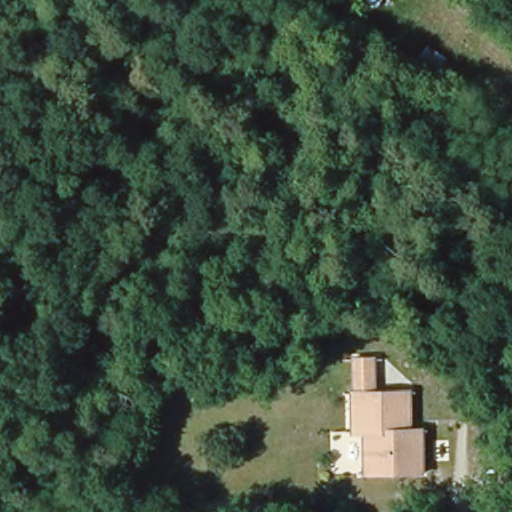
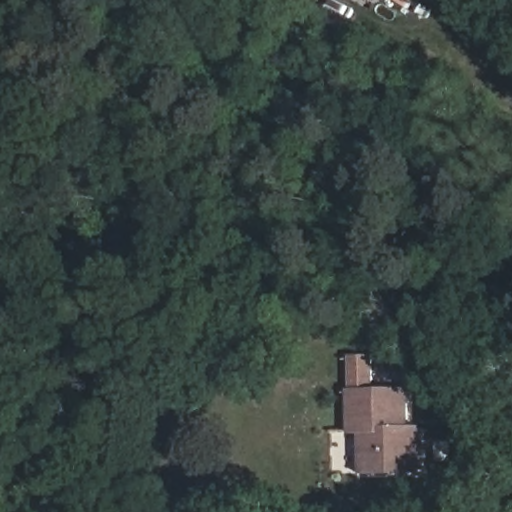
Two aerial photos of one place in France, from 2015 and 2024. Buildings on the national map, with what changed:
unchanged [(444,62),(434,82),(414,70),(427,52),(444,62)]
unchanged [(365,476),(363,451),(350,451),(343,365),(363,363),(367,396),(398,393),(400,412),(397,412),(397,431),(415,429),(419,472),(365,476)]

